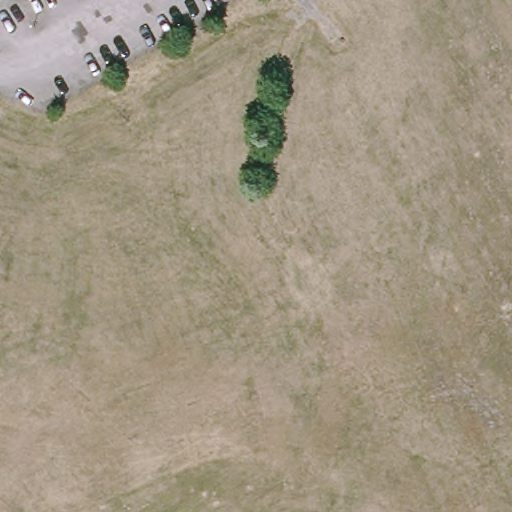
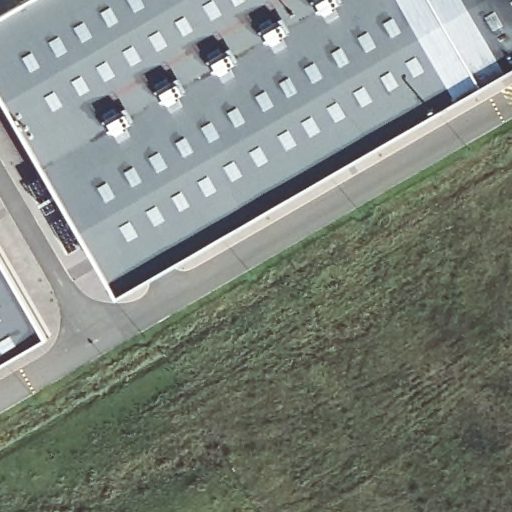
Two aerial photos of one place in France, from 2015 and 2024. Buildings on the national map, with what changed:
new [(127,285),(0,72),(0,23),(38,0),(512,0),(512,62),(127,285)]
new [(0,364),(0,242),(54,332),(0,364)]

